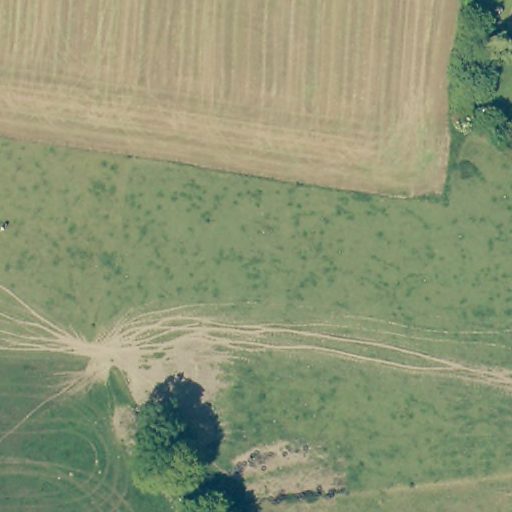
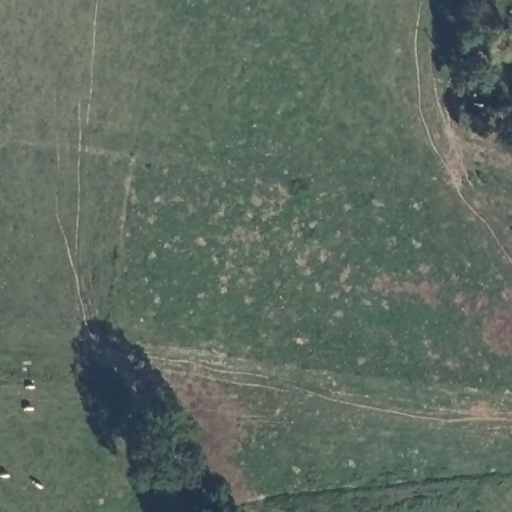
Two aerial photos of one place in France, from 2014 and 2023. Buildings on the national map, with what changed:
[]

